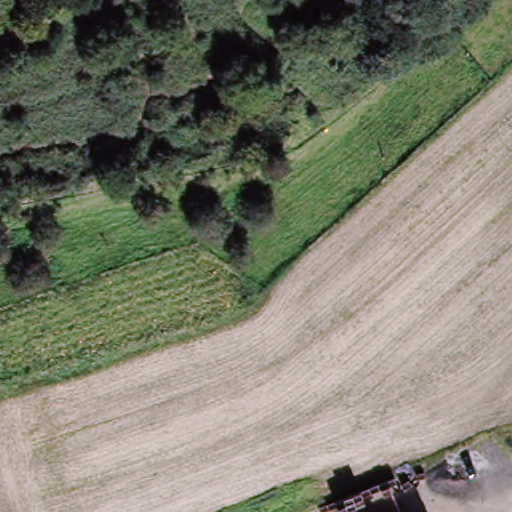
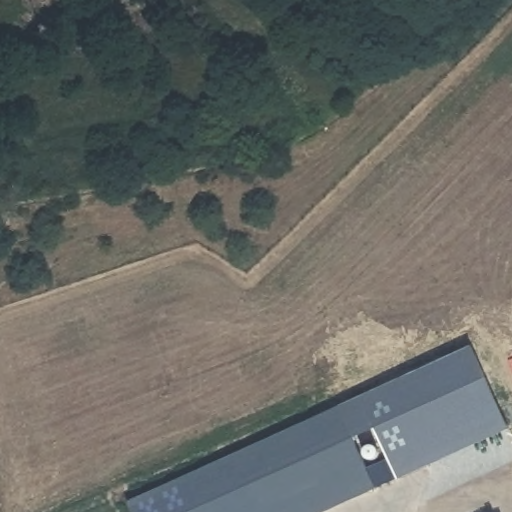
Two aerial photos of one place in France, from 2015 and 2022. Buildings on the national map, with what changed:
new [(389,460),(373,425),(350,436),(338,407),(468,347),(506,428),(397,477),(389,460)]
new [(365,470),(389,460),(397,477),(322,512),(131,512),(126,503),(338,407),(365,470)]

